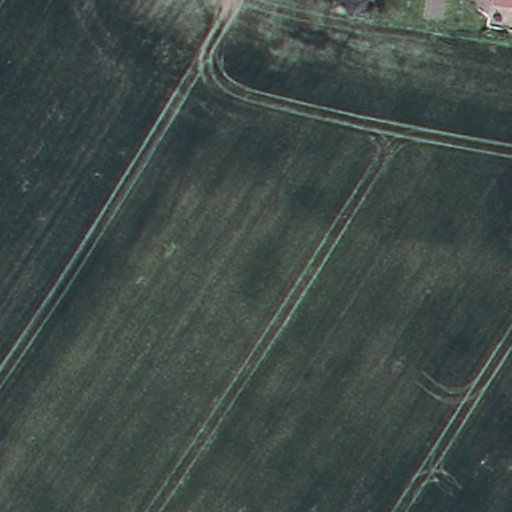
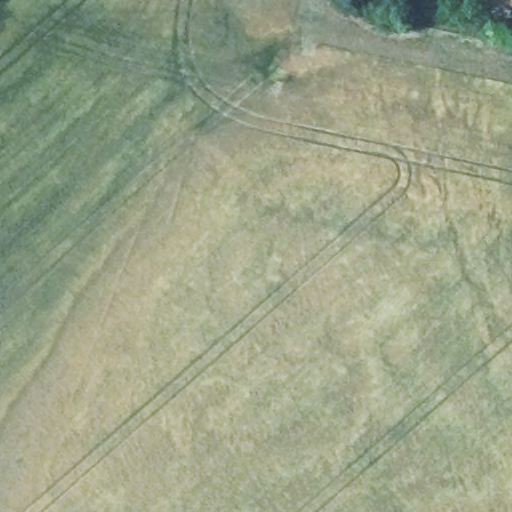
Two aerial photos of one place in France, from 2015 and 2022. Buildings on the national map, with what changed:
unchanged [(494,2),(494,0),(512,0),(512,5),(494,2)]

